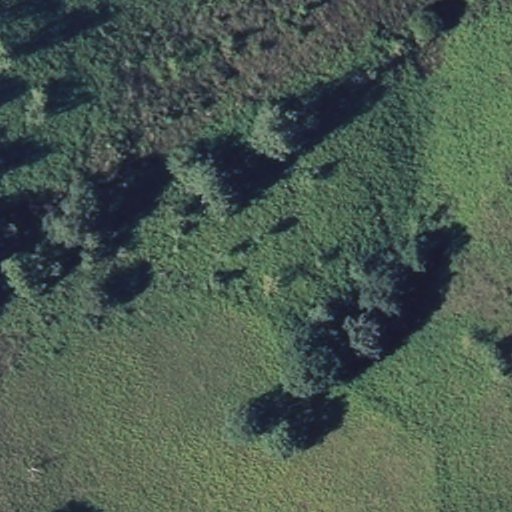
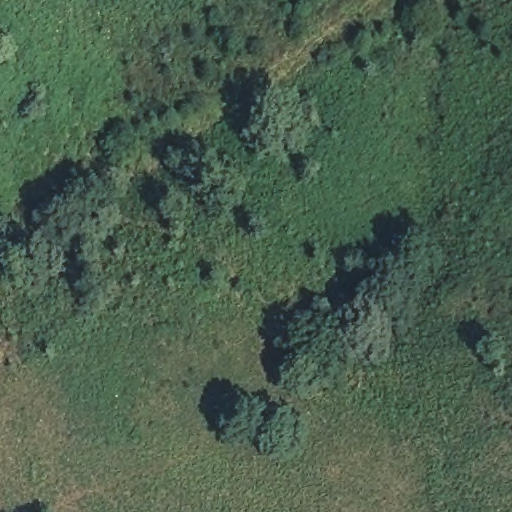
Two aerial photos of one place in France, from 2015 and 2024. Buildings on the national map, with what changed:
[]

